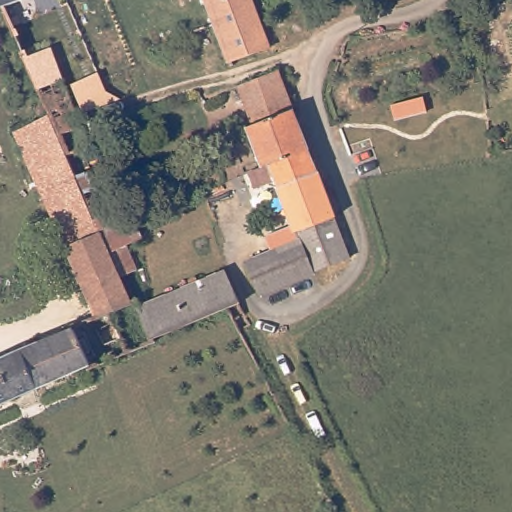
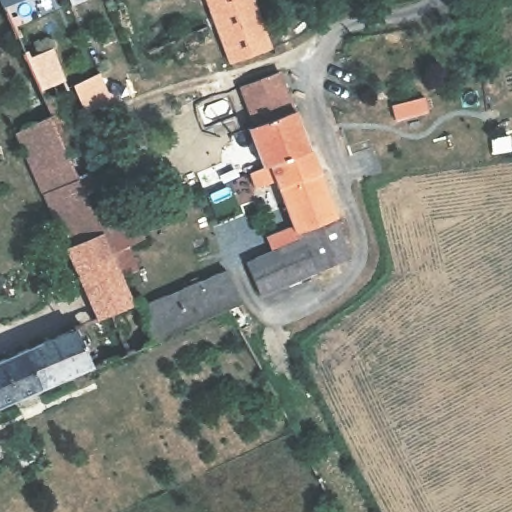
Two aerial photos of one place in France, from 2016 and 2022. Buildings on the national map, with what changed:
unchanged [(1,0),(17,0),(4,6),(1,0)]
unchanged [(269,44),(230,59),(209,0),(252,0),(269,44)]
unchanged [(223,61),(224,66),(211,72),(209,67),(194,30),(209,22),(223,61)]
unchanged [(53,45),(66,77),(39,89),(25,55),(53,45)]
unchanged [(253,122),(241,89),(280,73),(309,147),(262,166),(247,125),(253,122)]
unchanged [(96,313),(16,130),(50,115),(39,89),(66,77),(69,85),(94,146),(115,192),(122,210),(135,241),(110,252),(121,277),(131,298),(134,297),(137,300),(137,303),(151,336),(153,340),(124,352),(117,335),(103,341),(93,315),(96,313)]
unchanged [(262,166),(309,147),(317,169),(277,185),(273,177),(254,185),(249,171),(262,166)]
unchanged [(277,185),(317,169),(333,211),(293,227),(283,201),(277,185)]
unchanged [(296,239),(293,227),(333,211),(349,254),(309,271),(296,239)]
unchanged [(309,271),(260,292),(247,260),(276,247),(296,239),(309,271)]
unchanged [(226,268),(242,300),(236,302),(241,313),(229,320),(223,308),(213,312),(200,279),(226,268)]
unchanged [(200,279),(213,312),(151,336),(137,303),(200,279)]
unchanged [(72,325),(88,362),(0,401),(0,356),(72,325)]

